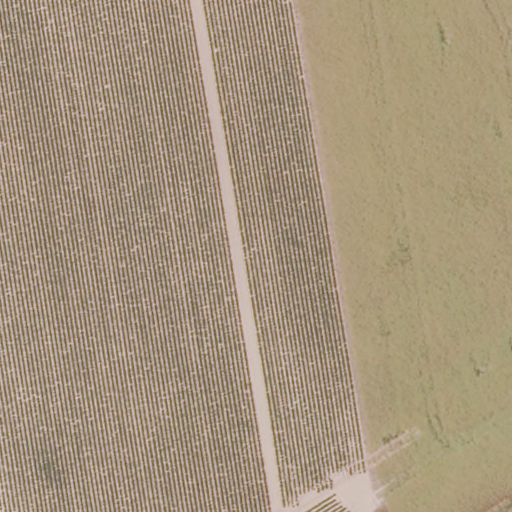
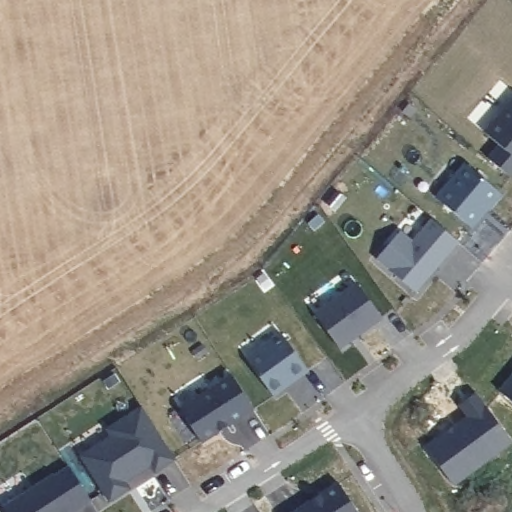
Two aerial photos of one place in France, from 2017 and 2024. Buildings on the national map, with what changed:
new [(501,150),(485,137),(512,106),(512,182),(511,183),(489,163),(501,150)]
new [(466,169),(501,199),(472,232),(437,202),(466,169)]
new [(400,236),(412,245),(431,223),(459,247),(416,297),(376,263),(400,236)]
new [(356,288),(381,322),(339,352),(314,318),(356,288)]
new [(281,337),(308,375),(273,401),(246,362),(281,337)]
new [(497,391),(512,373),(512,403),(497,391)]
new [(231,379),(253,412),(201,446),(179,412),(231,379)]
new [(454,486),(424,447),(466,417),(458,406),(476,393),(512,442),(512,443),(454,486)]
new [(173,462),(154,474),(150,467),(124,485),(128,491),(108,503),(79,460),(112,439),(107,432),(141,411),(173,462)]
new [(53,477),(75,512),(3,512),(2,511),(53,477)]
new [(338,487),(354,512),(299,512),(338,487)]

